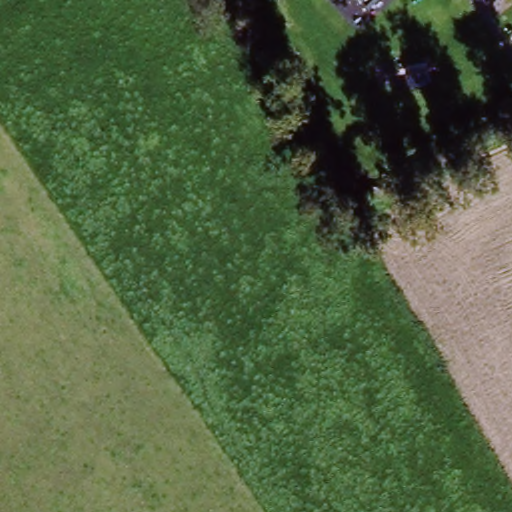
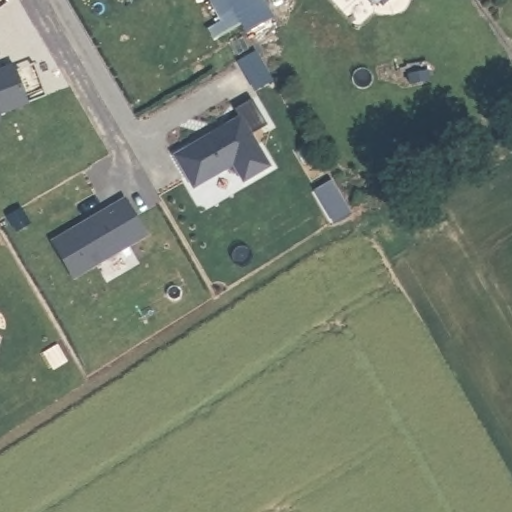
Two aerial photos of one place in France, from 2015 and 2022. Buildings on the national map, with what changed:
new [(247,30),(229,0),(264,0),(273,15),(247,30)]
new [(363,0),(385,0),(374,12),(363,0)]
new [(28,103),(2,112),(0,118),(0,68),(11,64),(28,103)]
new [(188,176),(177,157),(240,119),(236,111),(252,101),(268,127),(252,136),(270,167),(245,182),(235,165),(223,172),(195,187),(188,176)]
new [(147,234),(72,279),(49,241),(124,197),(147,234)]

